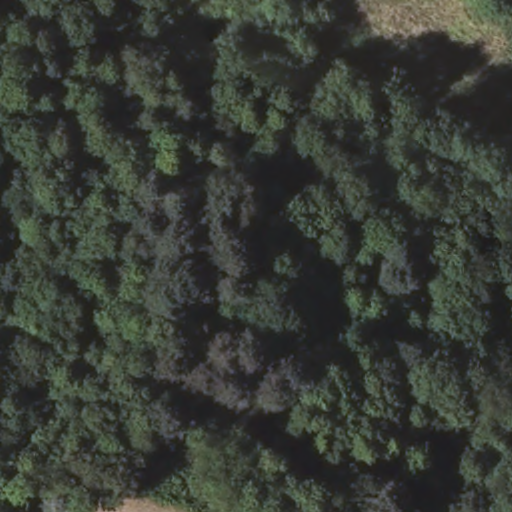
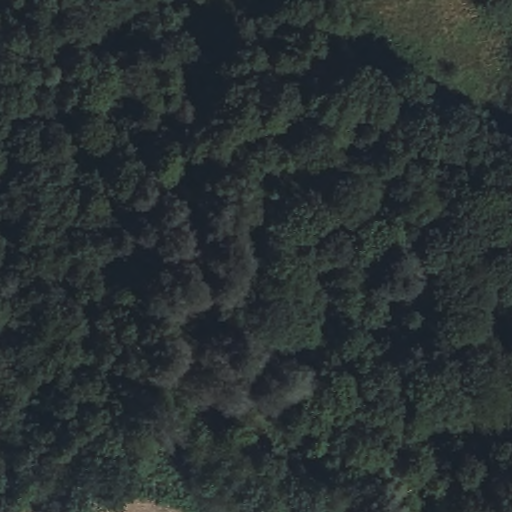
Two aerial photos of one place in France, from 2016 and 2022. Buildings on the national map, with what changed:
[]

